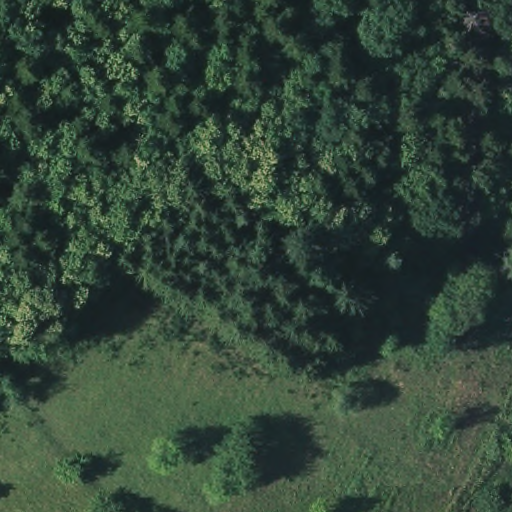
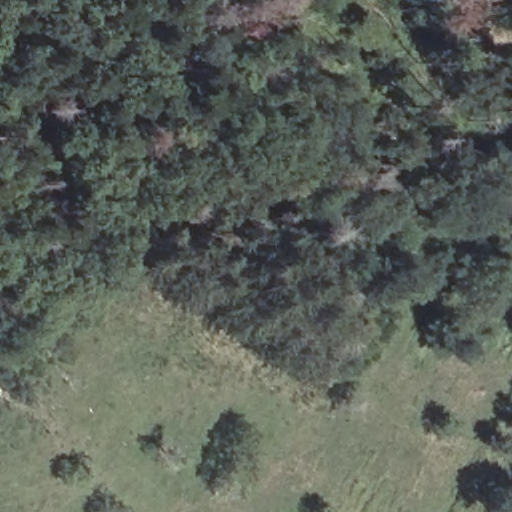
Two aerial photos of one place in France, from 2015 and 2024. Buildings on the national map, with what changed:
[]

